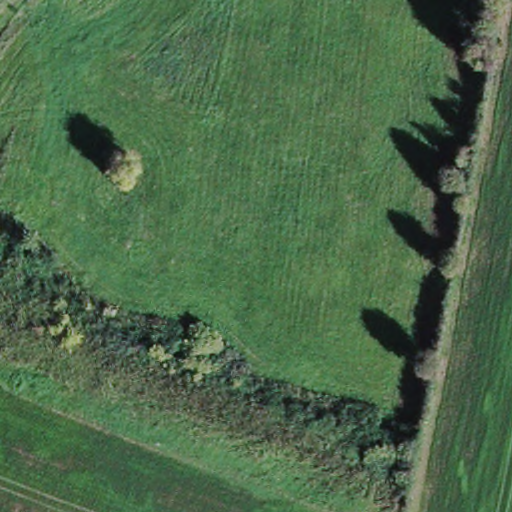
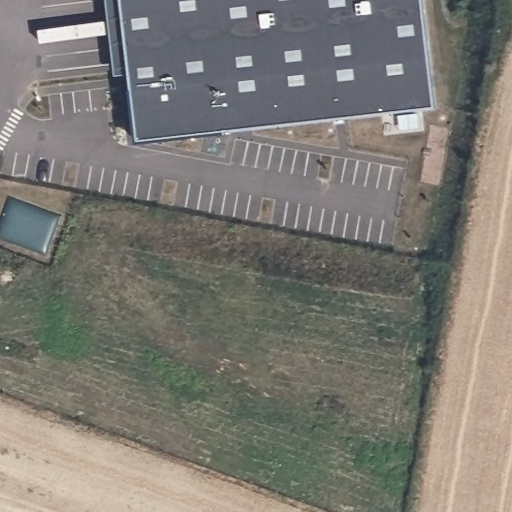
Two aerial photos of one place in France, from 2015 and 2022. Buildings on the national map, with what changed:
new [(436,107),(139,142),(123,0),(424,0),(436,107)]

